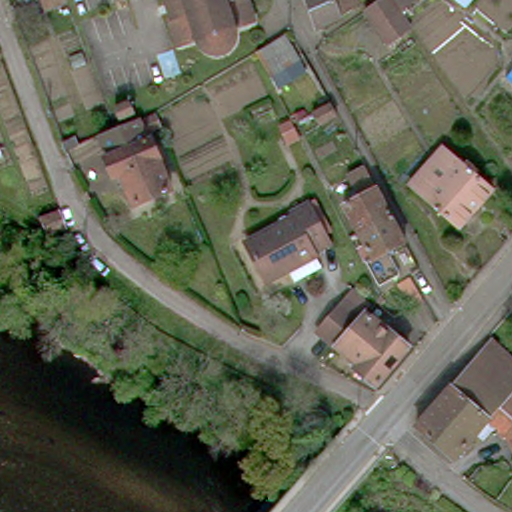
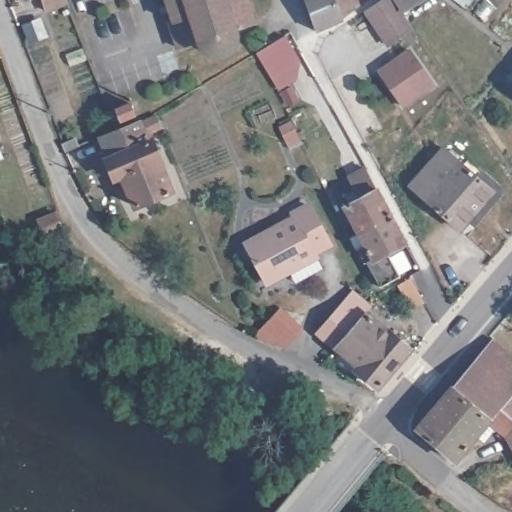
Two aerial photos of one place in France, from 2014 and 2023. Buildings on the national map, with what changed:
unchanged [(47,5),(46,0),(60,0),(47,5)]
unchanged [(229,41),(228,45),(226,49),(225,52),(221,55),(218,58),(214,59),(210,60),(205,60),(201,59),(197,57),(194,55),(191,52),(189,48),(188,47),(168,53),(158,24),(162,23),(155,0),(237,0),(245,27),(228,32),(229,36),(229,41)]
unchanged [(365,11),(350,21),(321,35),(318,25),(309,0),(360,0),(365,11)]
unchanged [(399,0),(430,0),(408,14),(398,0),(399,0)]
unchanged [(415,34),(392,49),(370,16),(393,1),(415,34)]
unchanged [(300,60),(272,77),(258,53),(285,37),(300,60)]
new [(435,85),(402,108),(376,70),(408,46),(435,85)]
unchanged [(332,105),(338,116),(300,137),(293,125),(332,105)]
unchanged [(120,113),(135,107),(140,119),(125,125),(120,113)]
unchanged [(167,133),(153,138),(155,145),(158,144),(177,196),(141,213),(127,182),(121,185),(112,163),(115,162),(106,142),(121,136),(161,119),(167,133)]
unchanged [(63,144),(75,139),(79,146),(65,152),(63,144)]
unchanged [(445,148),(493,190),(460,228),(411,185),(445,148)]
unchanged [(355,209),(350,201),(360,195),(353,183),(371,172),(396,218),(364,237),(350,211),(355,209)]
unchanged [(254,241),(299,217),(296,212),(310,205),(332,245),(316,253),(318,258),(302,267),(300,263),(290,268),(292,271),(272,283),(260,261),(250,243),(254,241)]
unchanged [(38,219),(56,213),(62,227),(45,233),(38,219)]
unchanged [(410,246),(393,257),(405,281),(385,292),(366,257),(373,253),(364,237),(396,218),(410,246)]
unchanged [(416,283),(430,307),(417,314),(403,290),(416,283)]
unchanged [(415,353),(382,392),(361,374),(364,370),(342,351),(337,346),(326,337),(336,326),(350,310),(355,305),(371,319),(373,317),(415,353)]
new [(278,310),(297,328),(285,341),(260,330),(278,310)]
unchanged [(506,440),(490,426),(455,466),(417,433),(493,344),(512,363),(512,450),(506,440)]

